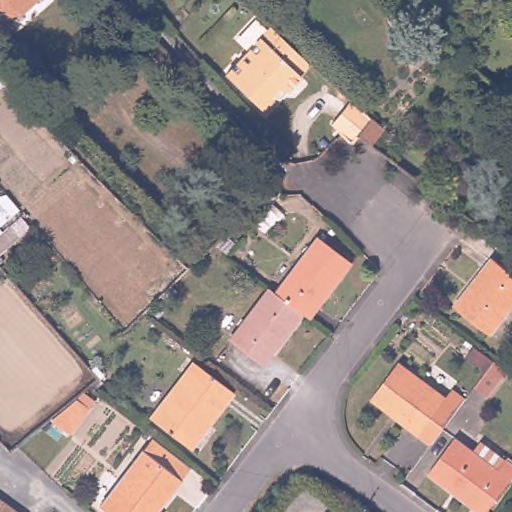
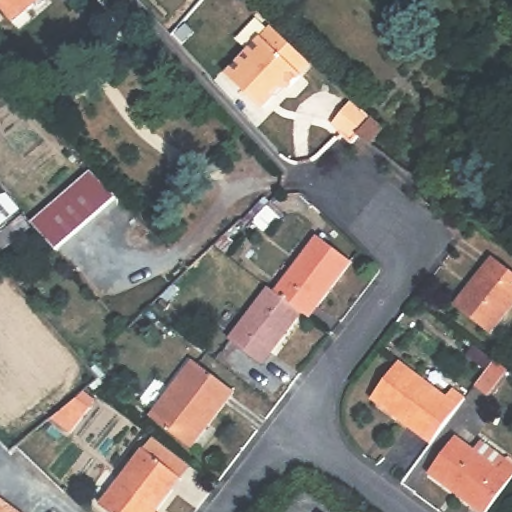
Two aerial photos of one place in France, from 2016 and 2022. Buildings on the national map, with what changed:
unchanged [(10,0),(38,0),(24,14),(10,0)]
unchanged [(246,52),(273,25),(311,62),(300,74),(302,76),(286,92),(281,87),(246,52)]
unchanged [(168,76),(147,54),(161,42),(181,64),(168,76)]
unchanged [(258,105),(226,73),(246,52),(281,87),(273,96),(262,109),(258,105)]
unchanged [(0,62),(2,65),(0,66),(0,62)]
unchanged [(381,120),(367,136),(360,144),(350,134),(347,132),(337,124),(360,99),(370,109),(381,120)]
new [(116,197),(55,250),(32,224),(34,222),(31,220),(90,172),(116,197)]
unchanged [(0,253),(0,219),(15,204),(34,222),(12,242),(0,253)]
unchanged [(317,237),(350,263),(308,319),(300,312),(274,292),(317,237)]
unchanged [(472,282),(493,253),(512,266),(512,302),(492,331),(458,307),(455,305),(472,282)]
unchanged [(300,312),(260,364),(229,339),(268,287),(274,292),(300,312)]
unchanged [(190,442),(155,415),(196,357),(232,385),(190,442)]
unchanged [(368,396),(396,358),(445,396),(452,387),(466,397),(431,442),(368,396)]
unchanged [(488,396),(474,386),(494,360),(507,370),(488,396)]
unchanged [(94,407),(75,431),(52,413),(61,405),(75,392),(94,407)]
unchanged [(98,507),(140,451),(150,436),(189,466),(179,480),(155,511),(156,512),(105,512),(98,507)]
unchanged [(455,437),(472,449),(481,437),(512,459),(512,478),(486,512),(480,512),(427,473),(455,437)]
unchanged [(0,500),(17,512),(0,512),(0,500)]

